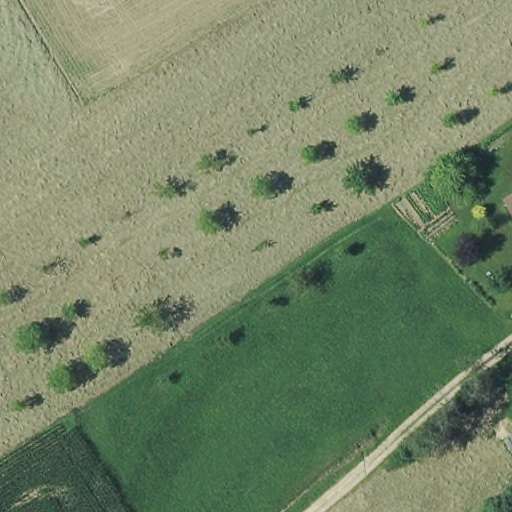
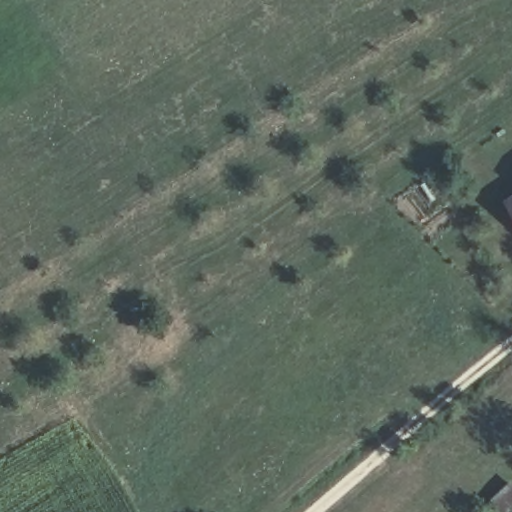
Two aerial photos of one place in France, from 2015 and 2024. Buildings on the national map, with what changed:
unchanged [(512,199),(512,212),(507,202),(512,199)]
unchanged [(512,487),(512,509),(509,512),(503,512),(494,502),(512,487)]

